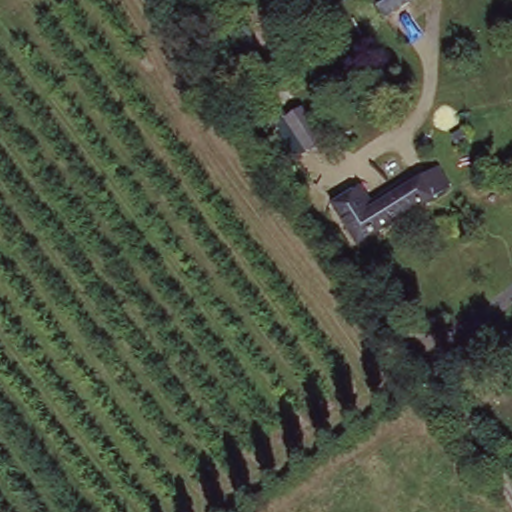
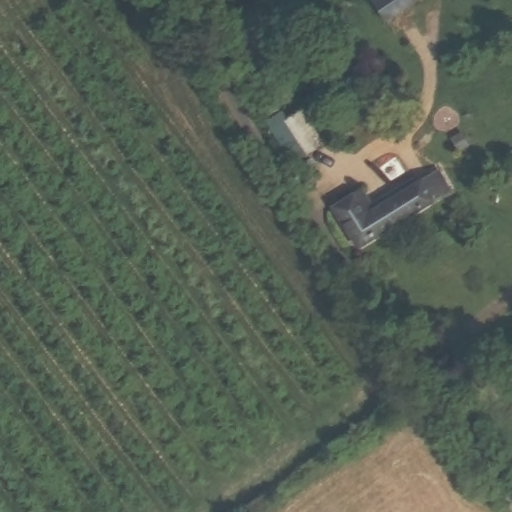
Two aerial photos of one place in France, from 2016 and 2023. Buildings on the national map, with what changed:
unchanged [(375,0),(411,0),(407,2),(409,7),(383,24),(370,2),(375,0)]
unchanged [(266,95),(276,89),(287,110),(277,115),(266,95)]
unchanged [(306,105),(326,141),(315,146),(293,114),(306,105)]
unchanged [(304,143),(323,172),(308,181),(291,151),(304,143)]
unchanged [(334,214),(362,197),(367,207),(406,184),(409,189),(415,186),(435,175),(448,194),(428,208),(360,253),(334,214)]

